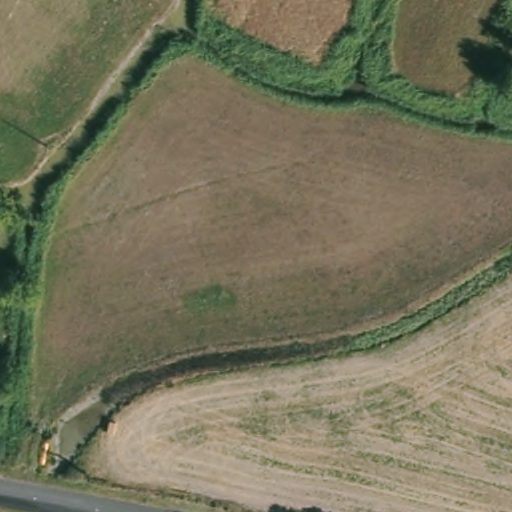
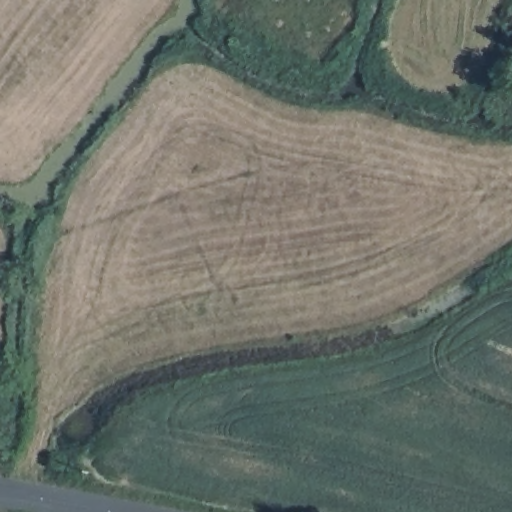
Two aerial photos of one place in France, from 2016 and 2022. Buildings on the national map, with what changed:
[]

